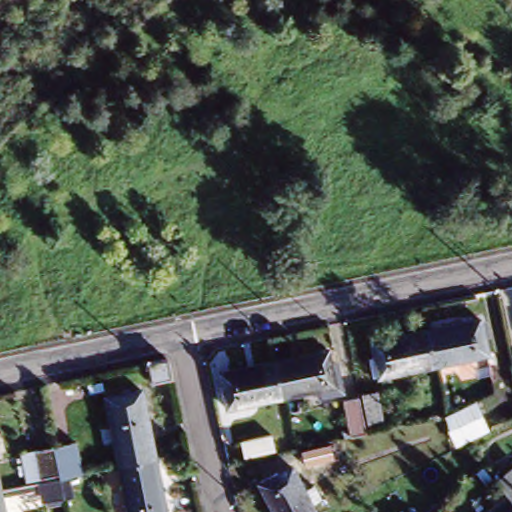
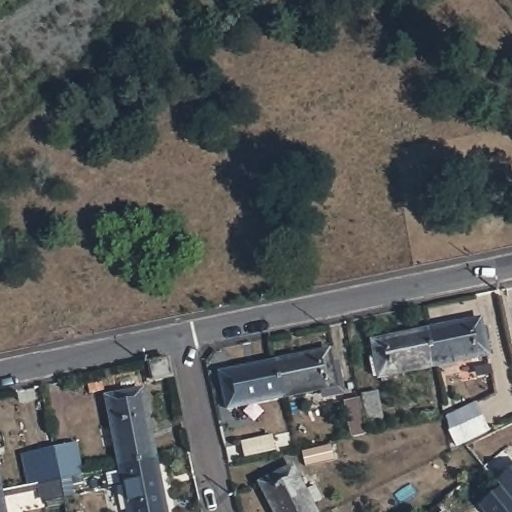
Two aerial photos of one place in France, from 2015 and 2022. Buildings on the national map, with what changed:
unchanged [(480,319),(487,354),(434,365),(427,330),(480,319)]
unchanged [(434,365),(379,377),(372,341),(427,330),(434,365)]
unchanged [(275,362),(328,350),(336,386),(282,397),(275,362)]
unchanged [(152,381),(148,363),(168,359),(172,377),(152,381)]
unchanged [(337,361),(345,393),(322,398),(320,389),(336,386),(331,362),(337,361)]
unchanged [(227,408),(220,373),(275,362),(282,397),(227,408)]
unchanged [(137,462),(120,466),(106,397),(142,390),(155,459),(137,462)]
unchanged [(368,424),(362,393),(377,391),(382,420),(368,424)]
unchanged [(351,436),(345,403),(360,400),(366,433),(351,436)]
unchanged [(490,430),(457,448),(448,431),(445,416),(475,402),(490,430)]
unchanged [(243,457),(240,441),(272,434),(275,450),(243,457)]
unchanged [(22,453),(54,446),(75,442),(82,474),(60,479),(60,474),(27,482),(22,453)]
unchanged [(166,512),(129,512),(120,466),(137,462),(155,459),(166,512)]
unchanged [(260,483),(292,466),(316,512),(275,512),(260,483)]
unchanged [(512,470),(512,499),(497,483),(512,470)]
unchanged [(0,509),(1,512),(0,512),(0,509)]

